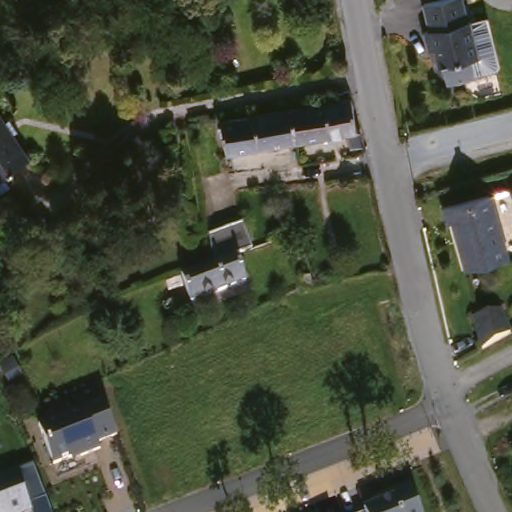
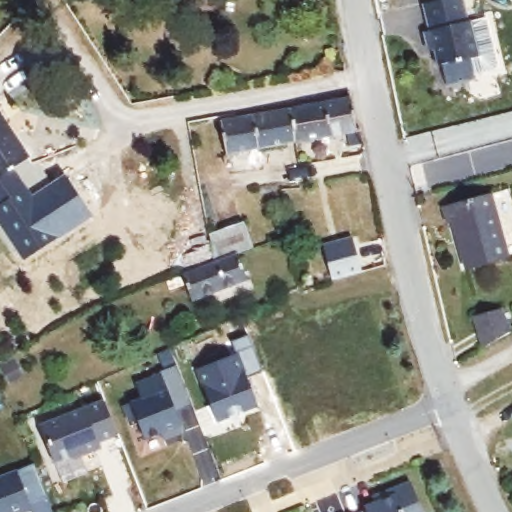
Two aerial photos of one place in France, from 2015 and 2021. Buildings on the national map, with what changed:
unchanged [(468,16),(478,51),(469,54),(474,73),(445,79),(440,59),(436,61),(432,45),(426,46),(421,28),(427,26),(420,0),(462,0),(466,16),(468,16)]
unchanged [(351,131),(356,130),(358,145),(348,147),(345,134),(324,138),(319,104),(346,100),(351,131)]
unchanged [(324,138),(290,143),(285,110),(288,110),(319,104),(324,138)]
unchanged [(290,143),(221,154),(217,122),(285,110),(290,143)]
new [(11,169),(26,190),(32,198),(64,177),(93,219),(25,260),(0,225),(0,112),(31,158),(11,169)]
demolished [(25,163),(0,179),(0,125),(25,163)]
unchanged [(302,189),(304,203),(285,205),(283,191),(302,189)]
unchanged [(506,262),(463,274),(450,230),(446,232),(440,213),(488,199),(506,262)]
unchanged [(209,238),(242,225),(253,250),(236,257),(214,265),(209,238)]
unchanged [(333,277),(326,248),(325,243),(356,237),(357,242),(364,271),(333,277)]
unchanged [(214,265),(236,257),(247,282),(193,304),(182,278),(214,265)]
unchanged [(500,312),(510,334),(483,349),(473,321),(500,312)]
new [(238,353),(233,340),(250,334),(264,371),(248,377),(259,405),(238,413),(240,416),(219,424),(198,368),(238,353)]
new [(174,413),(184,434),(164,442),(161,434),(144,441),(130,403),(141,399),(135,383),(175,368),(190,407),(174,413)]
unchanged [(40,424),(103,402),(116,434),(97,443),(98,450),(54,464),(40,424)]
unchanged [(31,512),(0,512),(0,475),(13,470),(32,464),(45,496),(29,503),(32,512),(31,512)]
unchanged [(420,512),(358,512),(367,509),(363,502),(374,499),(371,494),(407,483),(420,512)]

